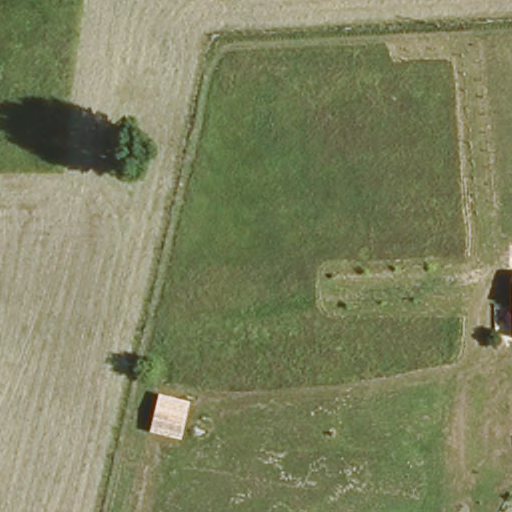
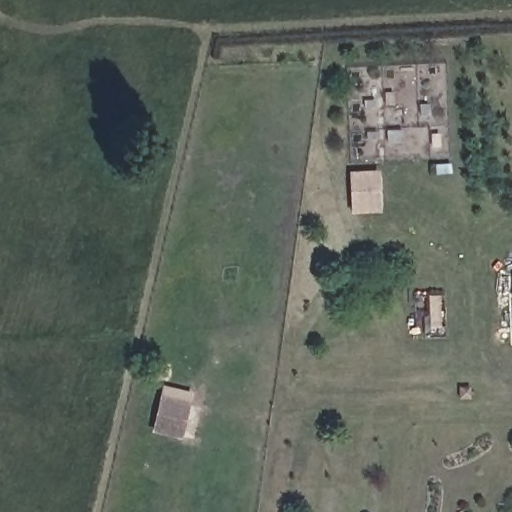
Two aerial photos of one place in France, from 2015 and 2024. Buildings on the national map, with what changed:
new [(378,170),(380,212),(350,214),(348,171),(378,170)]
unchanged [(181,439),(150,432),(159,395),(190,401),(181,439)]

